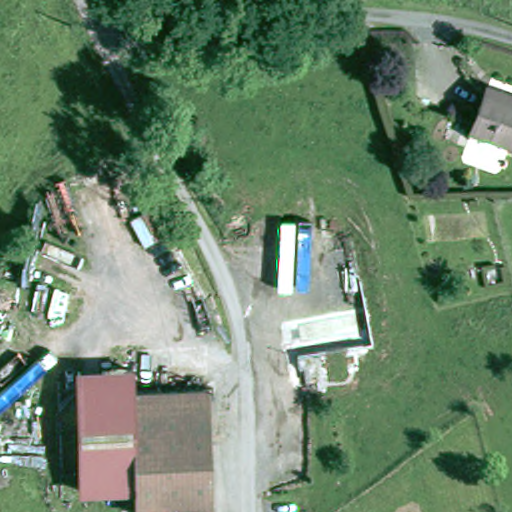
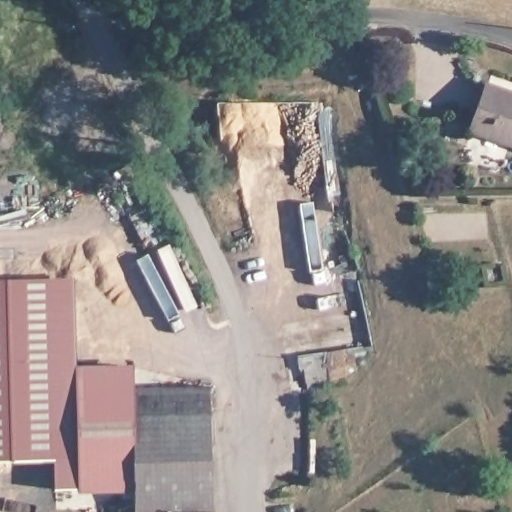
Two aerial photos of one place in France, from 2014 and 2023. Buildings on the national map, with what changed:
unchanged [(470,131),(485,91),(487,86),(512,94),(512,146),(470,131)]
new [(75,366),(138,363),(138,371),(83,372),(87,494),(77,494),(77,487),(55,487),(54,457),(0,459),(0,279),(73,277),(75,366)]
unchanged [(213,392),(218,512),(141,512),(141,493),(118,493),(87,494),(83,372),(138,371),(138,395),(163,394),(213,392)]
unchanged [(421,512),(402,512),(418,506),(421,512)]

